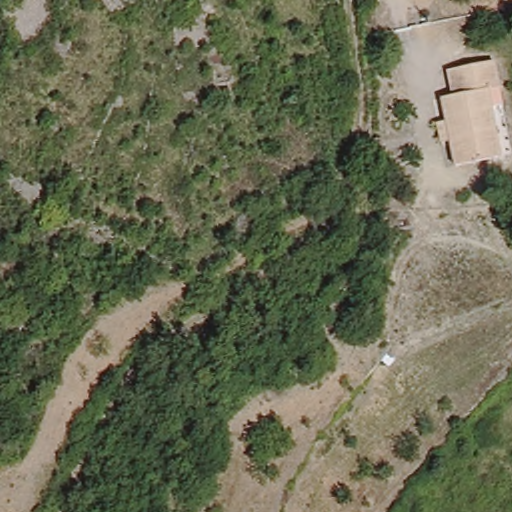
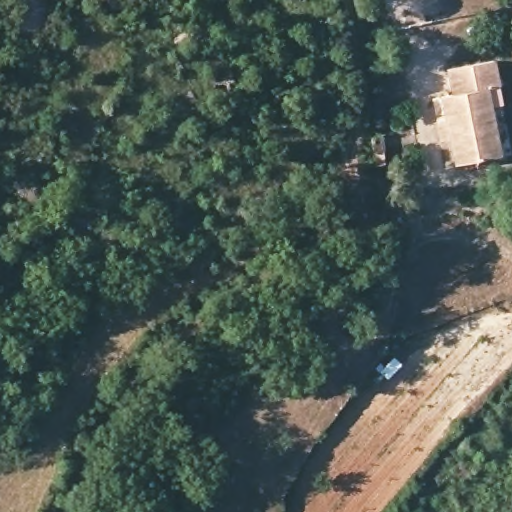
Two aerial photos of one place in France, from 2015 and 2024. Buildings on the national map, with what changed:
unchanged [(442,97),(460,95),(457,67),(500,64),(505,89),(492,91),(502,157),(452,162),(442,97)]

